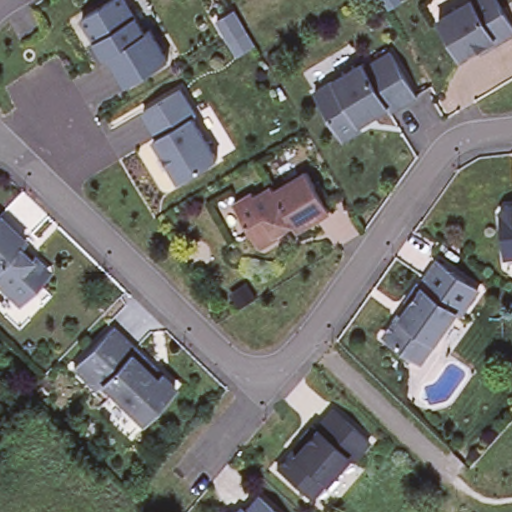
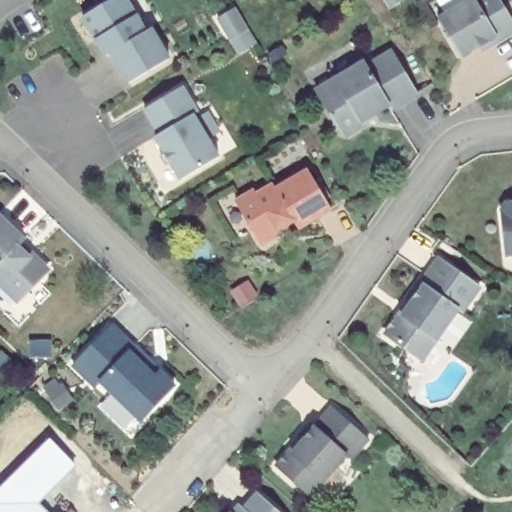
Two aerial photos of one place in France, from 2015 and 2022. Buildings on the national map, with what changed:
unchanged [(93,36),(79,14),(102,0),(124,0),(141,29),(147,25),(166,56),(125,80),(107,50),(103,52),(93,36)]
unchanged [(512,21),(512,34),(481,52),(478,47),(456,59),(434,20),(465,0),(501,0),(512,21)]
unchanged [(248,36),(232,46),(219,25),(236,15),(248,36)]
unchanged [(414,95),(389,110),(386,105),(353,125),(356,130),(344,137),(314,90),(359,64),(364,69),(388,53),(414,95)]
unchanged [(161,152),(166,149),(156,133),(161,130),(146,105),(184,82),(199,109),(195,111),(221,152),(183,175),(173,160),(168,162),(161,152)]
unchanged [(329,210),(296,230),(291,220),(274,230),(276,235),(261,245),(233,201),(251,191),(253,196),(271,185),(274,191),(305,171),(329,210)]
unchanged [(508,245),(504,206),(508,200),(512,199),(512,253),(509,254),(508,245)]
unchanged [(50,263),(49,273),(20,303),(0,284),(0,215),(26,240),(39,252),(50,263)]
unchanged [(479,287),(460,311),(458,310),(420,359),(383,332),(405,303),(408,293),(414,286),(421,282),(439,259),(479,287)]
unchanged [(84,378),(72,366),(109,326),(146,361),(158,372),(173,387),(140,421),(98,381),(93,387),(84,378)]
unchanged [(369,440),(351,460),(347,456),(309,498),(275,466),(288,450),(291,453),(304,440),(299,437),(311,423),(315,427),(332,408),(369,440)]
new [(40,502),(50,512),(0,512),(0,488),(49,439),(74,465),(40,502)]
unchanged [(239,512),(258,495),(277,512),(239,512)]

